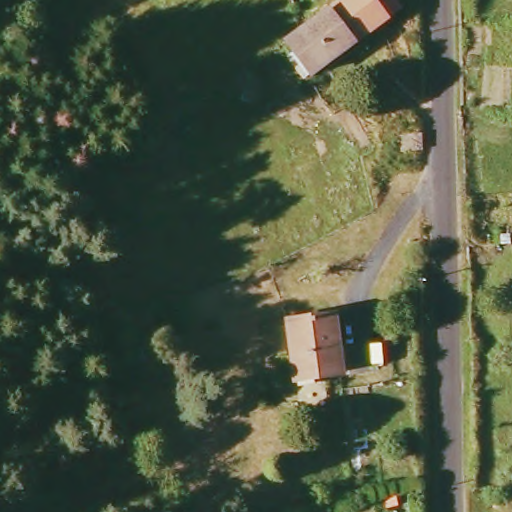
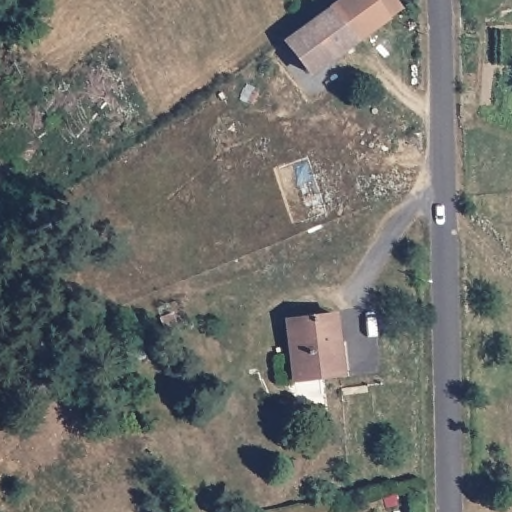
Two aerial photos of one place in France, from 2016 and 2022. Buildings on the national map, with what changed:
unchanged [(283,44),(313,21),(342,0),(387,0),(396,12),(304,76),(283,44)]
unchanged [(392,153),(392,133),(422,133),(423,152),(392,153)]
unchanged [(289,381),(289,321),(338,320),(341,377),(289,381)]

